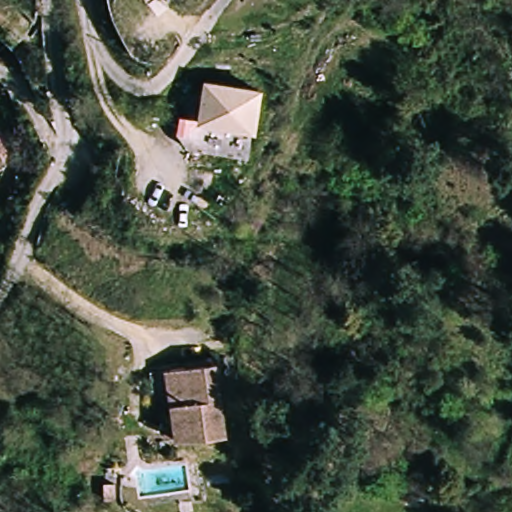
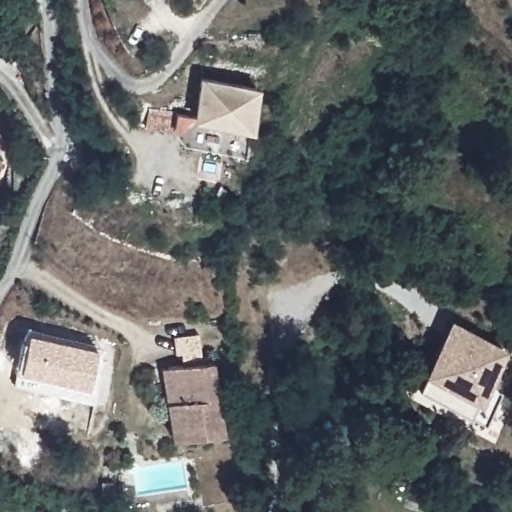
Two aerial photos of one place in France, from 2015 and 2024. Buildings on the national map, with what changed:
unchanged [(202,79),(258,83),(256,122),(201,118),(202,79)]
unchanged [(256,122),(255,150),(193,147),(181,134),(183,118),(201,118),(256,122)]
unchanged [(3,174),(0,176),(0,143),(15,166),(3,174)]
new [(453,327),(512,365),(512,407),(496,431),(419,381),(453,327)]
new [(88,386),(18,369),(27,329),(98,346),(88,386)]
unchanged [(170,394),(150,397),(144,369),(215,356),(227,426),(178,435),(170,394)]

